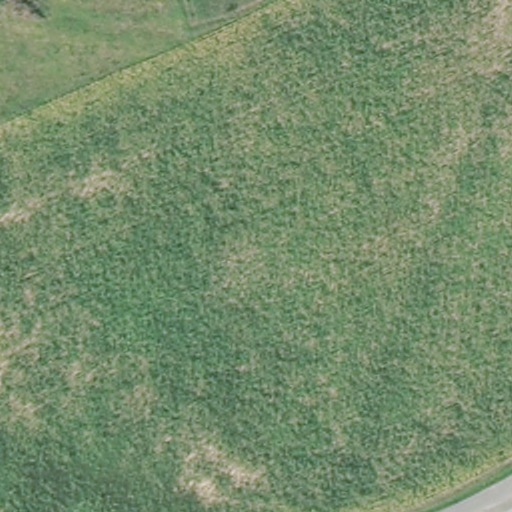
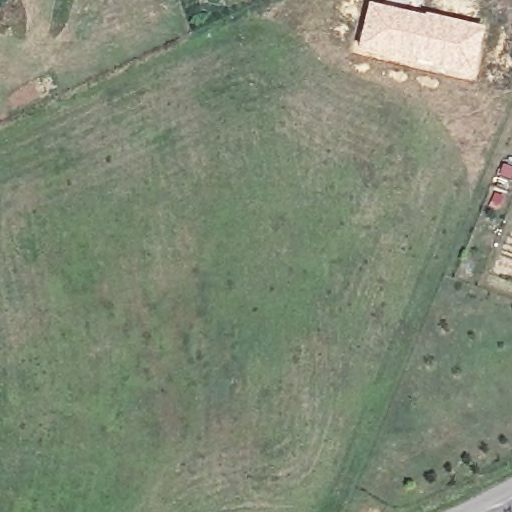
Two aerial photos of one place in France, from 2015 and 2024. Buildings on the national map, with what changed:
new [(367,4),(450,21),(482,29),(472,79),(395,61),(356,49),(367,4)]

